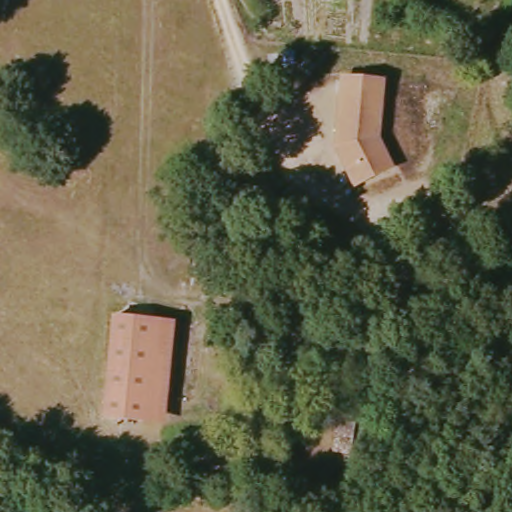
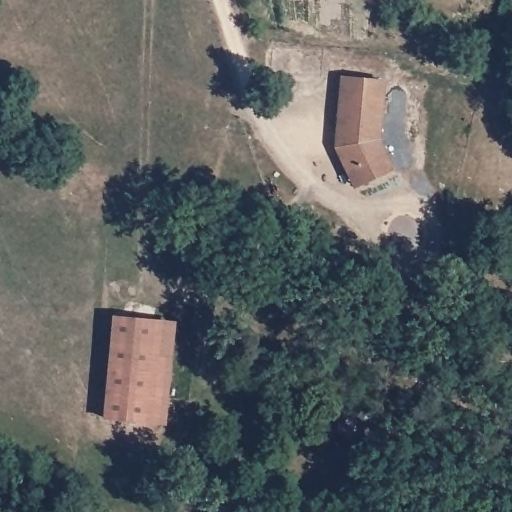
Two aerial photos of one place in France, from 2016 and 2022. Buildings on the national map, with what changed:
unchanged [(381,141),(394,170),(351,191),(333,150),(340,77),(387,81),(381,141)]
unchanged [(126,319),(167,322),(156,423),(116,419),(126,319)]

